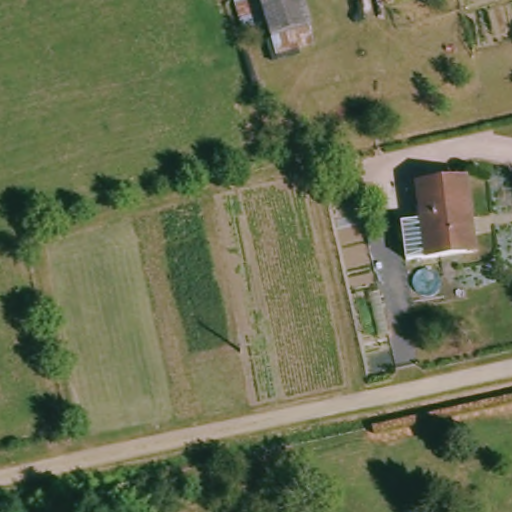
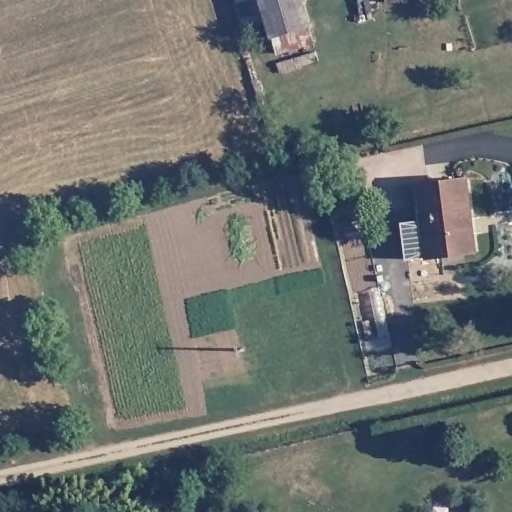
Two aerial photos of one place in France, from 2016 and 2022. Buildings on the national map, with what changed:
unchanged [(310,40),(275,51),(259,0),(298,0),(310,40)]
unchanged [(384,2),(384,0),(389,0),(384,2)]
unchanged [(394,222),(415,220),(412,182),(459,175),(467,247),(399,256),(394,222)]

